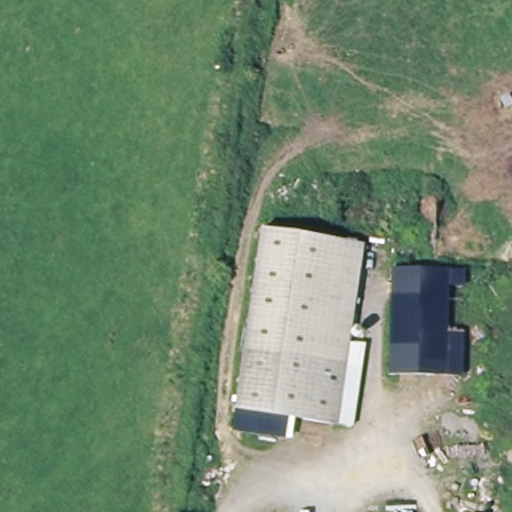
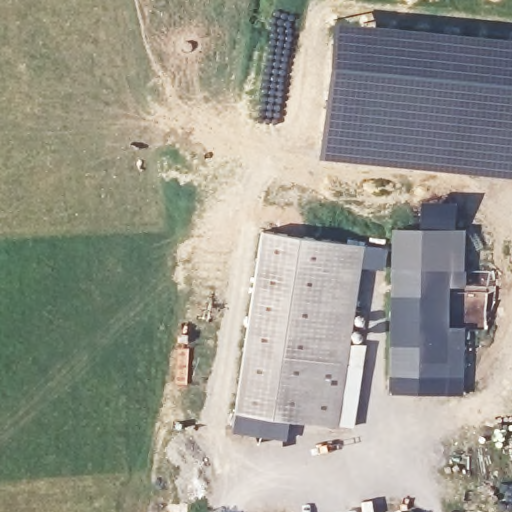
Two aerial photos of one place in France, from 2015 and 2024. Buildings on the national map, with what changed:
new [(329,19),(347,19),(370,23),(456,27),(512,33),(512,177),(317,158),(329,19)]
new [(464,228),(464,286),(448,285),(447,327),(463,327),(462,394),(389,392),(391,227),(464,228)]
unchanged [(290,419),(288,439),(239,433),(241,413),(249,352),(264,233),(361,245),(349,342),(365,344),(356,426),(339,425),(290,419)]

